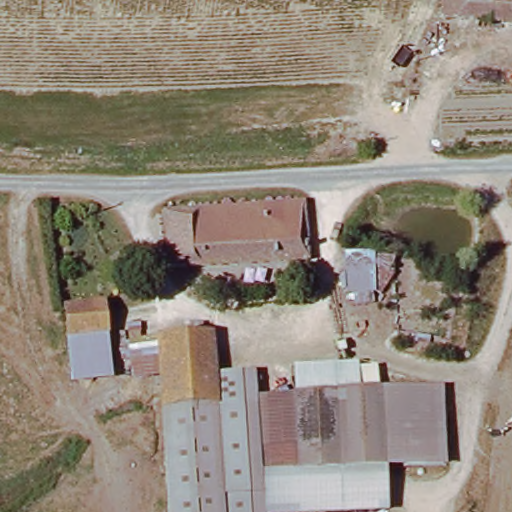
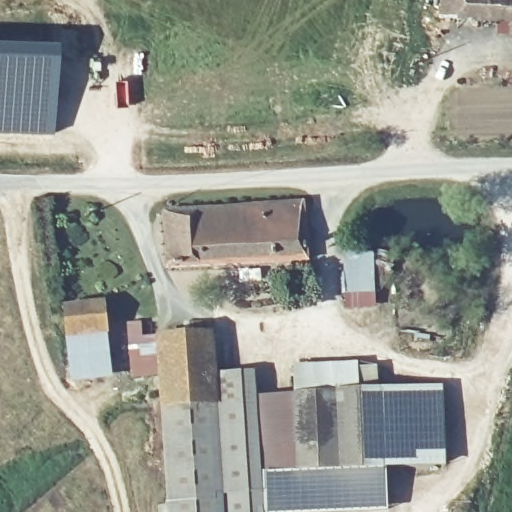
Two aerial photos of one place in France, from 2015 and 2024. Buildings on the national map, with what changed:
unchanged [(436,0),(512,0),(512,26),(435,24),(436,0)]
new [(0,132),(0,42),(54,44),(50,133),(0,132)]
unchanged [(157,266),(156,211),(298,209),(298,264),(157,266)]
unchanged [(347,257),(375,255),(378,297),(350,300),(347,257)]
unchanged [(59,343),(55,311),(97,304),(101,338),(105,383),(65,387),(59,343)]
unchanged [(159,412),(156,362),(128,363),(128,336),(143,336),(144,342),(205,341),(206,373),(209,409),(159,412)]
unchanged [(291,364),(375,359),(380,396),(328,398),(294,399),(291,364)]
unchanged [(209,409),(206,373),(257,370),(259,401),(262,475),(306,473),(380,470),(383,470),(383,511),(360,512),(217,512),(209,409)]
unchanged [(437,393),(440,468),(383,470),(380,396),(437,393)]
unchanged [(380,396),(383,470),(306,473),(262,475),(259,401),(294,399),(328,398),(380,396)]
unchanged [(159,412),(209,409),(217,512),(165,512),(159,412)]

